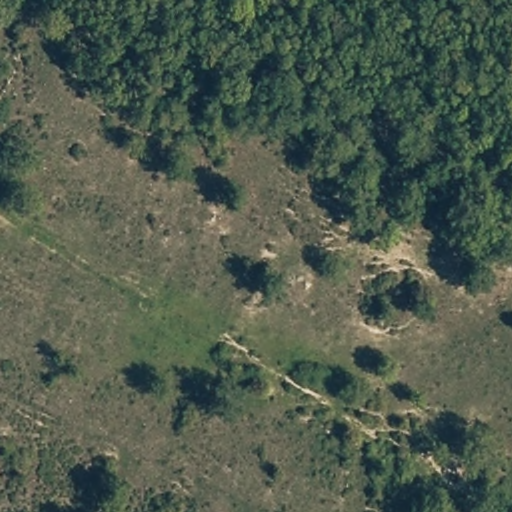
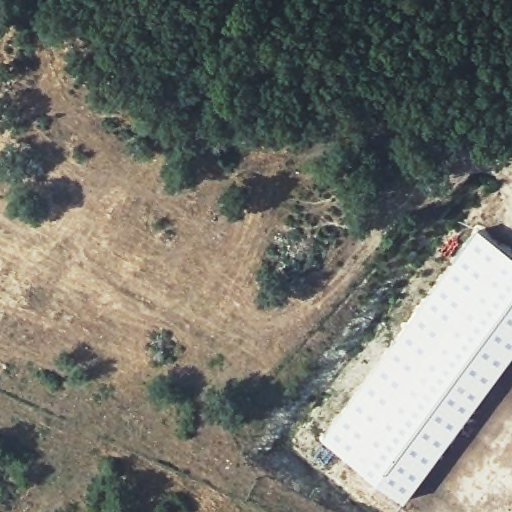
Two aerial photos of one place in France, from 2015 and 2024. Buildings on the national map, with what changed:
new [(512,254),(512,356),(405,502),(322,440),(478,229),(512,254)]

